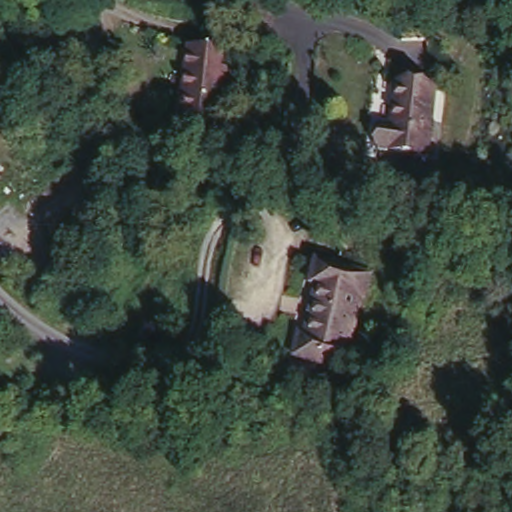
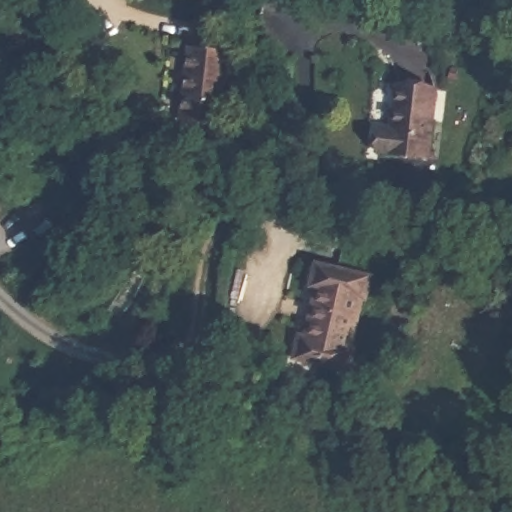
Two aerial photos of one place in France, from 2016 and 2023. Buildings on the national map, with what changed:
unchanged [(232,46),(221,109),(181,102),(192,39),(232,46)]
unchanged [(432,150),(373,149),(373,116),(384,116),(387,72),(438,79),(432,150)]
unchanged [(352,365),(291,355),(314,257),(373,268),(352,365)]

